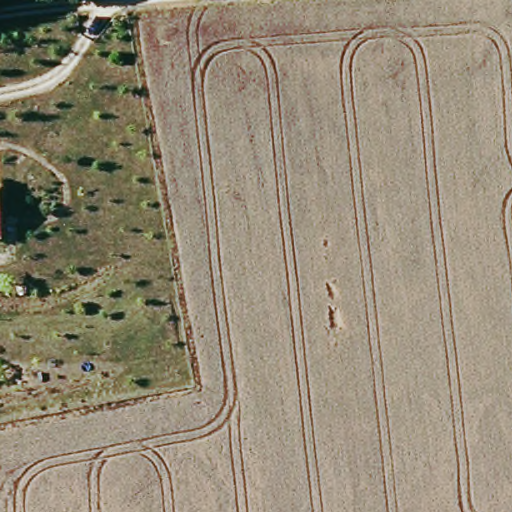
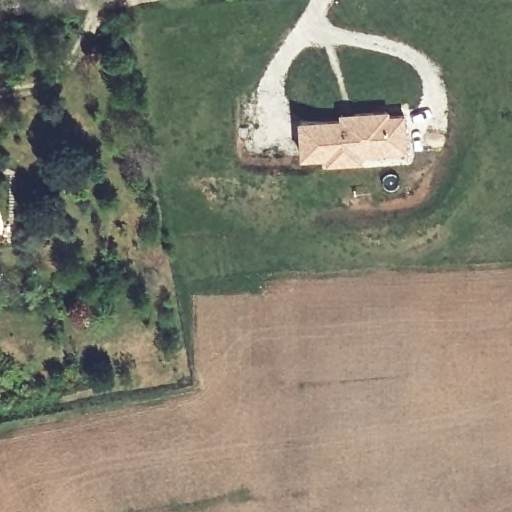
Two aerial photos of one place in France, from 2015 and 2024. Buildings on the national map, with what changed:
new [(392,153),(364,154),(363,163),(331,164),(330,158),(305,160),(302,123),(345,120),(344,114),(357,112),(390,110),(390,115),(406,114),(407,130),(407,152),(392,153)]
unchanged [(3,185),(4,220),(0,220),(0,240),(0,185),(3,185)]

